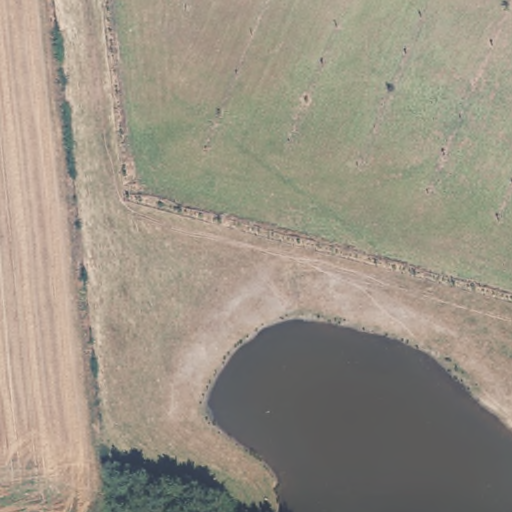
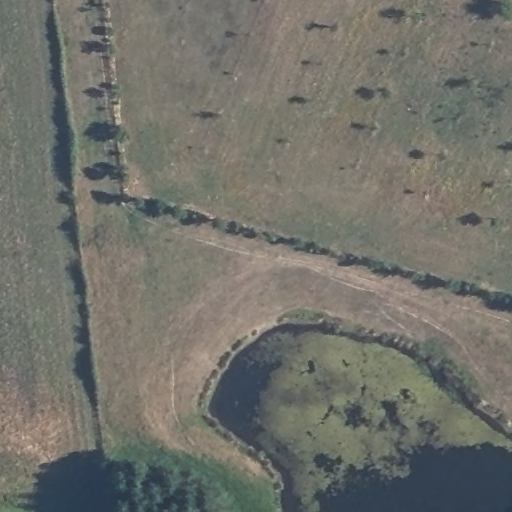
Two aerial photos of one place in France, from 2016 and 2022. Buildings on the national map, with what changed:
[]

